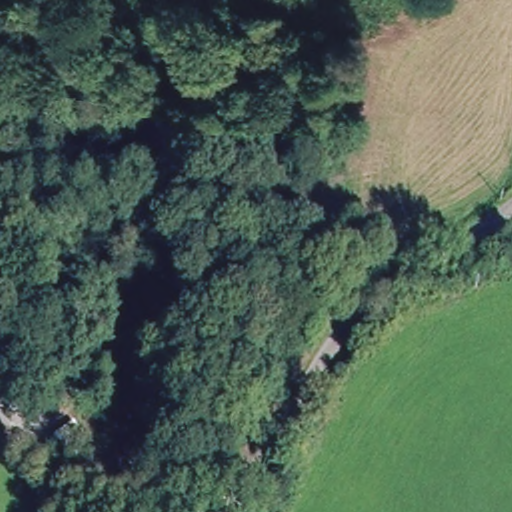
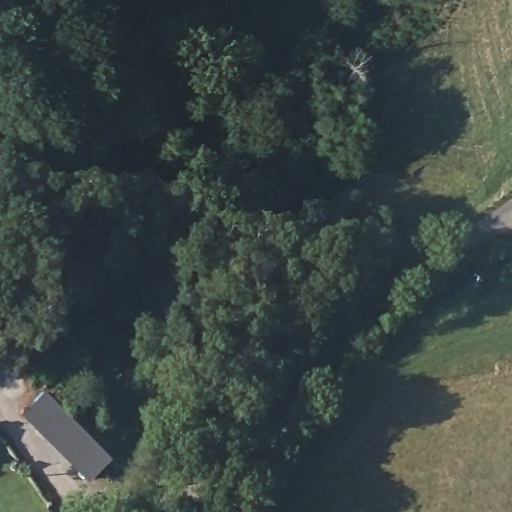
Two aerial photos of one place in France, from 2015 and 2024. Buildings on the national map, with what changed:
new [(112,464),(89,487),(21,420),(44,396),(112,464)]

